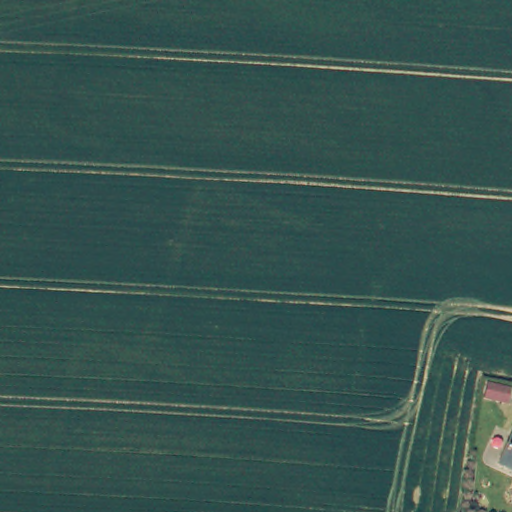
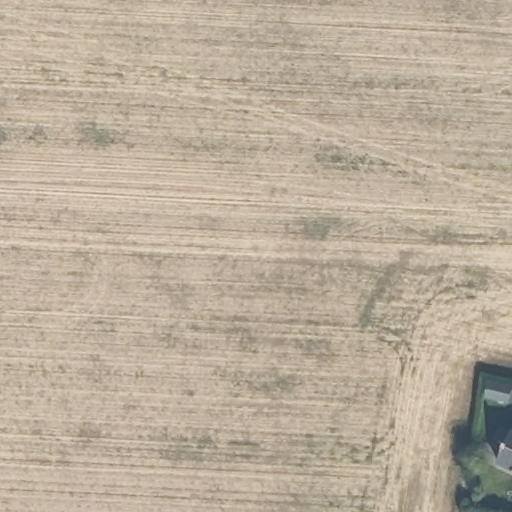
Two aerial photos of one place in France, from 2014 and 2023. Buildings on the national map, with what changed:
unchanged [(502,466),(512,446),(512,471),(502,466)]

